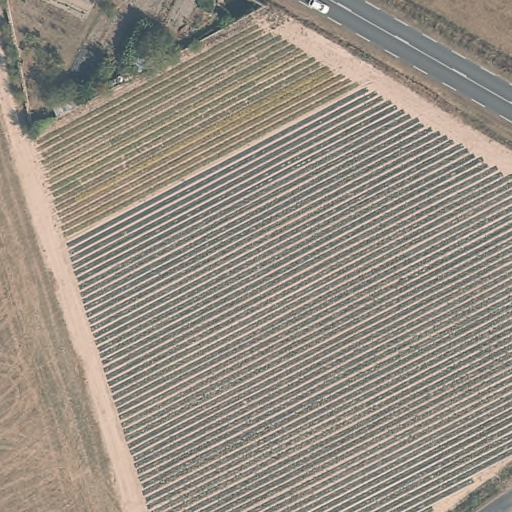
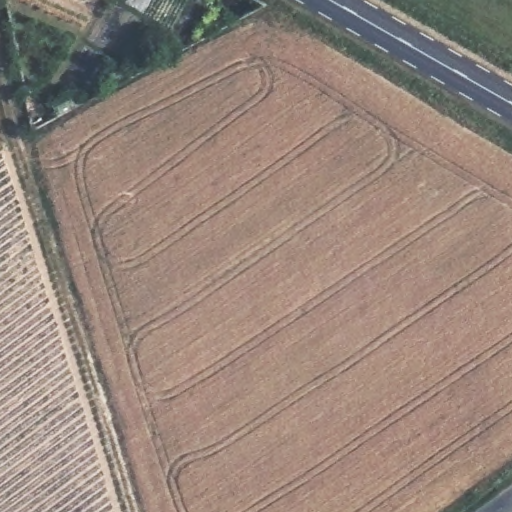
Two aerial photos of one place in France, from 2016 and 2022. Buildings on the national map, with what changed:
unchanged [(49,102),(71,91),(78,104),(66,111),(56,116),(49,102)]

